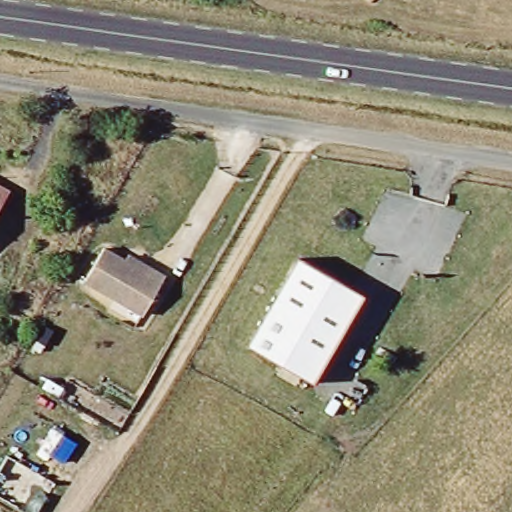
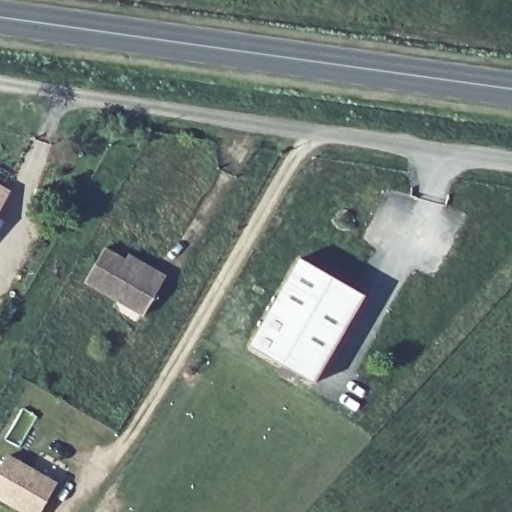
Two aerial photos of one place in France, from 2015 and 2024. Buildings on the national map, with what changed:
unchanged [(141,312),(81,280),(100,247),(122,259),(125,254),(149,266),(162,273),(141,312)]
unchanged [(250,350),(300,261),(366,297),(317,386),(250,350)]
new [(52,485),(36,512),(19,512),(0,501),(0,467),(5,458),(52,485)]

